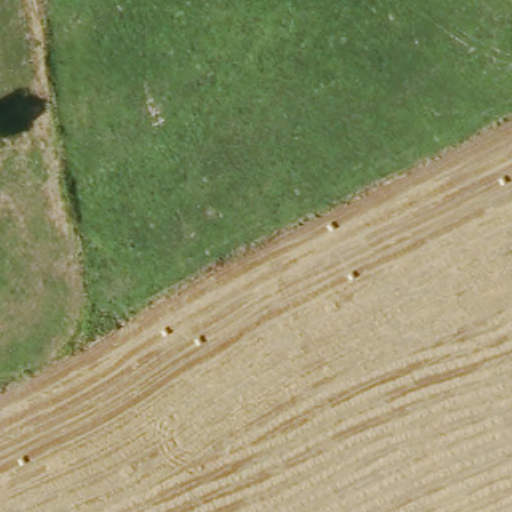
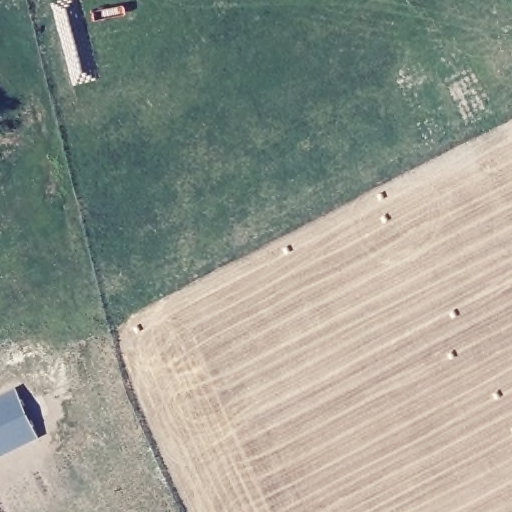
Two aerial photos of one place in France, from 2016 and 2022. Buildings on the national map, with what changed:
new [(13,388),(38,438),(0,457),(0,395),(13,388)]

